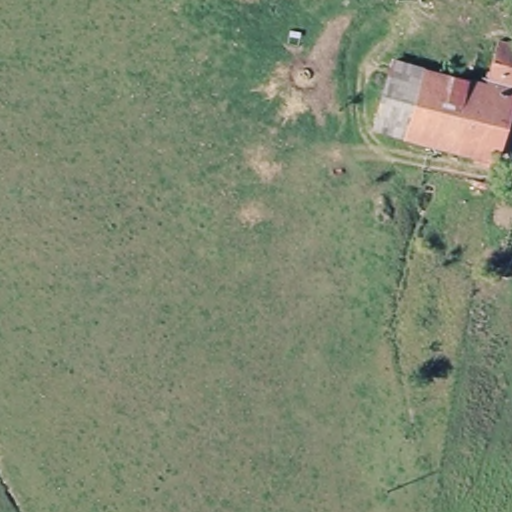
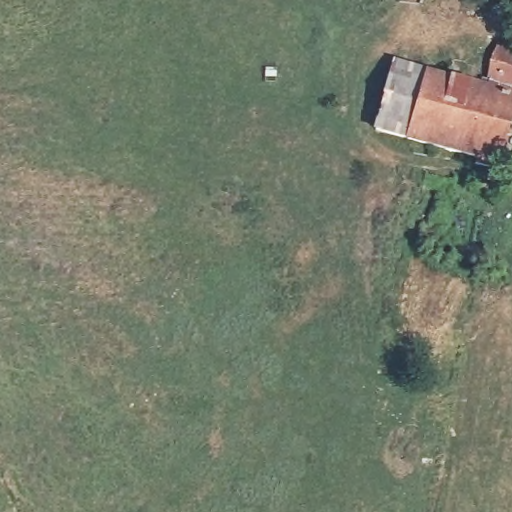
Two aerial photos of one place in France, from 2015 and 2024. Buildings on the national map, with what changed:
unchanged [(502,49),(512,52),(512,77),(493,71),(502,49)]
unchanged [(512,109),(494,164),(378,137),(395,68),(486,89),(493,71),(512,77),(512,109)]

